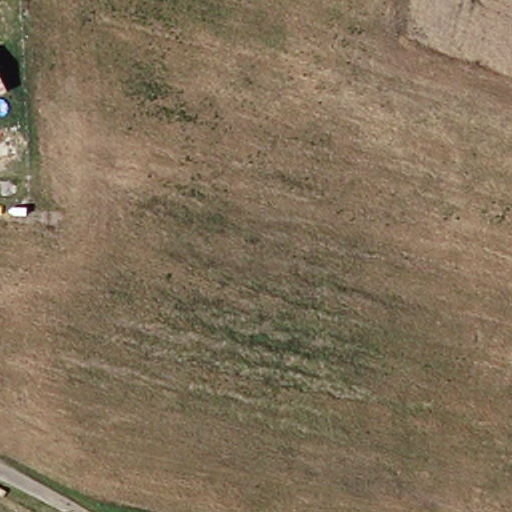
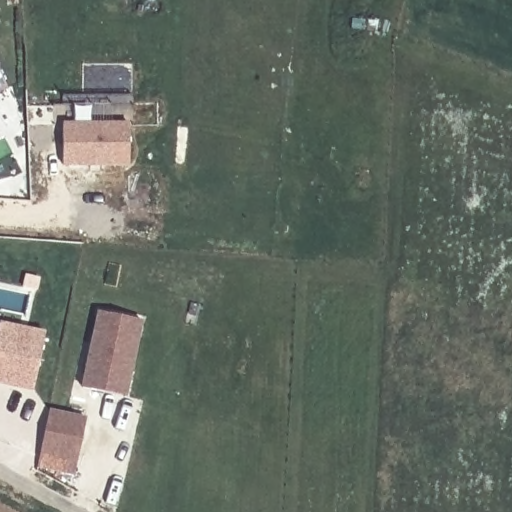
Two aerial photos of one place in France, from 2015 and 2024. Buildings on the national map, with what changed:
unchanged [(4,91),(0,93),(0,83),(4,91)]
new [(65,125),(130,124),(130,164),(65,165),(65,125)]
new [(100,310),(139,318),(127,380),(123,395),(84,387),(87,372),(100,310)]
new [(45,332),(34,391),(0,384),(0,322),(45,332)]
new [(50,411),(86,419),(82,439),(77,461),(40,453),(45,431),(50,411)]

